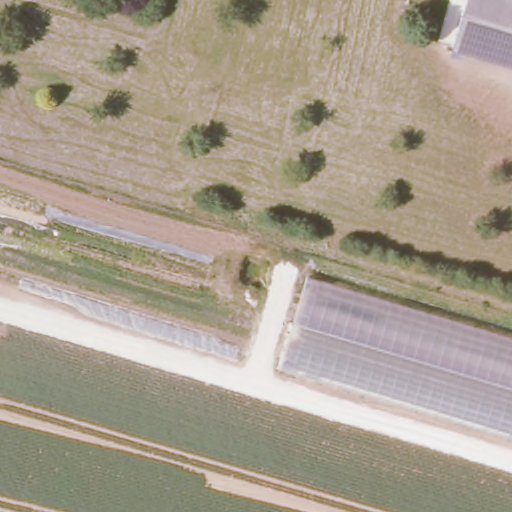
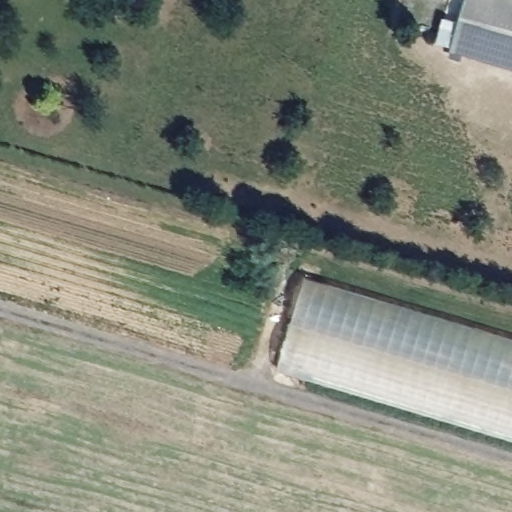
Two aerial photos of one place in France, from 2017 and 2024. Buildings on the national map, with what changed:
unchanged [(469,0),(512,0),(512,62),(456,45),(469,0)]
unchanged [(307,276),(512,337),(512,438),(278,367),(307,276)]

